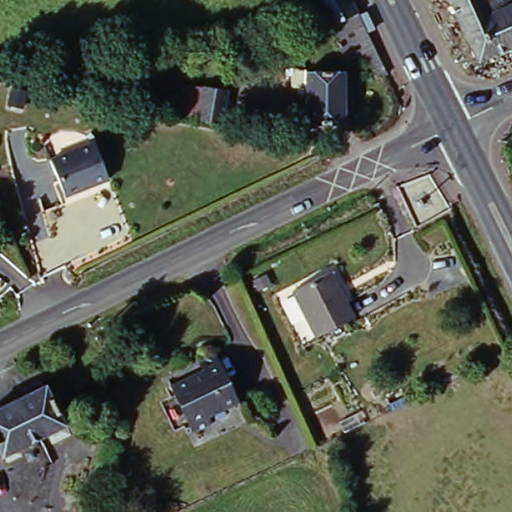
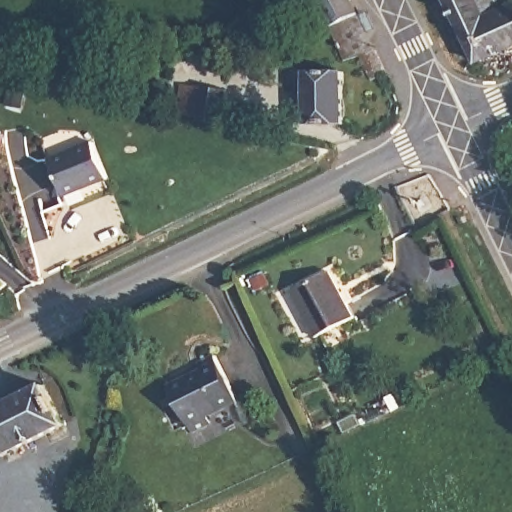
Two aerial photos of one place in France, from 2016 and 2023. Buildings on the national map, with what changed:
unchanged [(361,13),(333,25),(322,0),(354,0),(361,13)]
unchanged [(483,57),(455,0),(512,0),(512,44),(483,57)]
unchanged [(377,80),(366,59),(351,64),(340,40),(333,25),(361,13),(380,51),(387,65),(391,72),(377,80)]
unchanged [(242,45),(242,55),(231,55),(232,45),(242,45)]
unchanged [(348,69),(348,120),(313,119),(311,94),(305,92),(305,85),(312,86),(312,68),(348,69)]
unchanged [(224,123),(197,120),(197,116),(178,113),(182,84),(201,87),(227,90),(224,123)]
unchanged [(93,141),(109,177),(66,196),(50,159),(93,141)]
unchanged [(329,270),(354,318),(314,338),(291,290),(329,270)]
unchanged [(170,384),(188,376),(204,371),(200,363),(219,356),(240,401),(212,415),(214,423),(193,433),(170,384)]
unchanged [(65,423),(2,452),(0,449),(0,404),(44,382),(65,423)]

